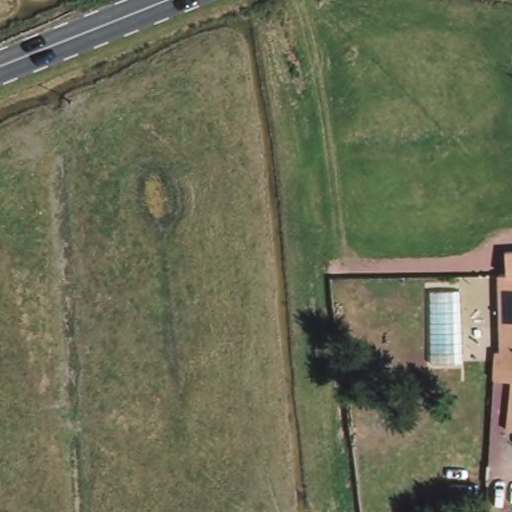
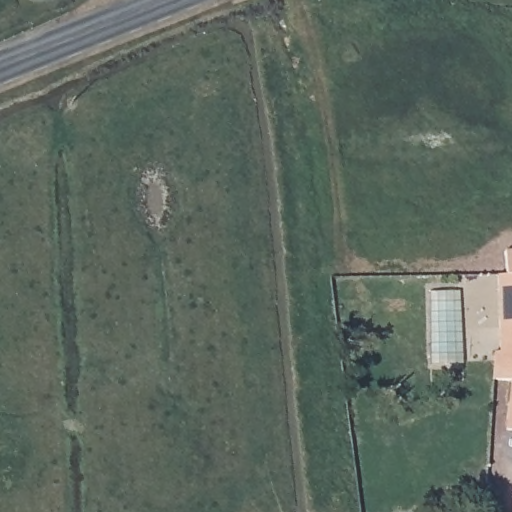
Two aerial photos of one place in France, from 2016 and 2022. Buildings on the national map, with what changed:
unchanged [(491,353),(497,352),(497,270),(506,270),(507,246),(512,246),(512,436),(507,436),(508,383),(491,383),(491,353)]

